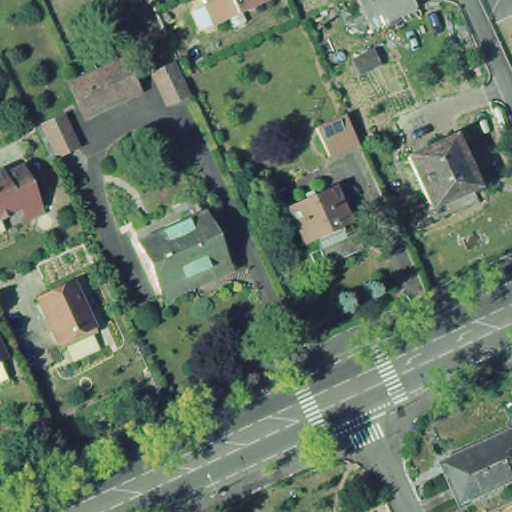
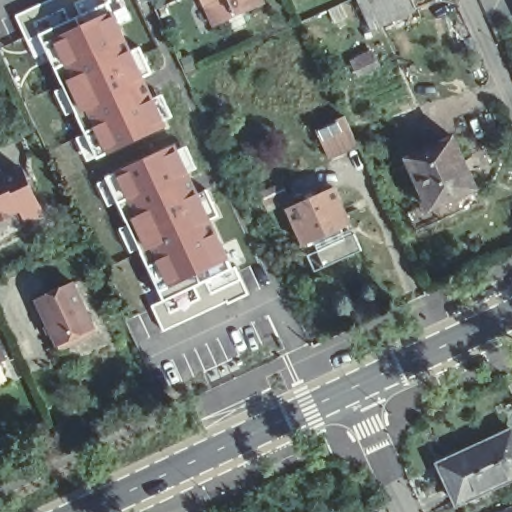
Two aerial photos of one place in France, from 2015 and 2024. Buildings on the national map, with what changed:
new [(108,0),(161,122),(85,154),(23,15),(59,0),(108,0)]
demolished [(167,38),(147,48),(125,0),(150,0),(154,9),(167,38)]
unchanged [(217,30),(204,0),(264,0),(267,8),(217,30)]
unchanged [(417,0),(423,14),(377,34),(362,1),(364,0),(417,0)]
unchanged [(374,53),(381,67),(360,76),(354,62),(374,53)]
demolished [(129,86),(79,110),(75,112),(65,90),(69,89),(118,64),(129,86)]
demolished [(175,68),(192,99),(172,109),(158,77),(175,68)]
demolished [(81,153),(62,161),(47,130),(65,121),(81,153)]
unchanged [(358,139),(360,145),(363,152),(333,165),(320,136),(350,121),(358,139)]
unchanged [(420,200),(417,194),(398,149),(443,129),(466,180),(462,182),(420,200)]
new [(242,295),(171,324),(103,174),(171,146),(242,295)]
unchanged [(16,174),(35,219),(20,226),(15,215),(0,222),(0,181),(16,174)]
unchanged [(420,200),(462,182),(468,197),(405,224),(397,204),(417,194),(420,200)]
unchanged [(300,246),(305,244),(288,208),(332,188),(350,224),(337,229),(342,239),(353,235),(361,250),(322,268),(312,273),(300,246)]
demolished [(142,240),(200,214),(220,260),(182,279),(185,289),(168,296),(160,300),(135,244),(142,240)]
demolished [(182,279),(220,260),(224,271),(225,285),(197,302),(191,299),(185,289),(182,279)]
unchanged [(31,300),(67,282),(89,327),(53,345),(31,300)]
unchanged [(0,361),(0,349),(5,359),(0,361)]
unchanged [(504,429),(512,447),(512,474),(456,501),(437,459),(504,429)]
unchanged [(512,506),(512,512),(499,512),(512,506)]

